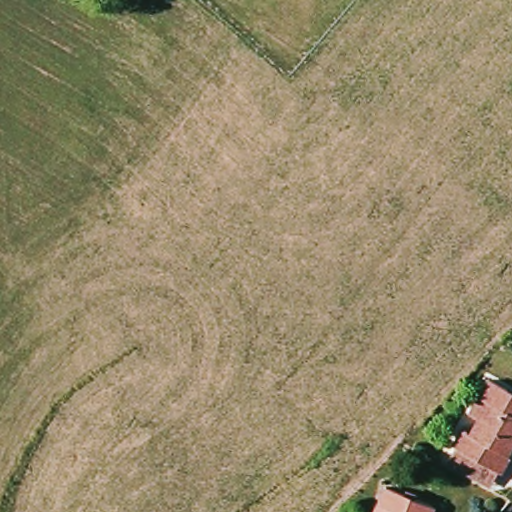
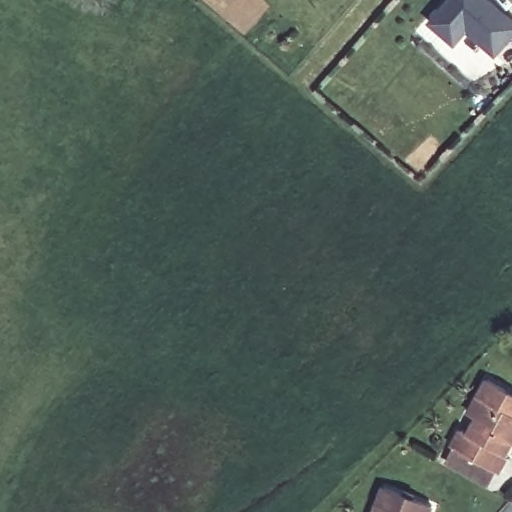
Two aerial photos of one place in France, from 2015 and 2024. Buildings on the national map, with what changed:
new [(512,16),(512,42),(498,58),(469,33),(457,47),(428,23),(448,0),(493,0),(512,16)]
unchanged [(450,447),(461,431),(470,435),(477,418),(470,414),(488,382),(512,395),(512,441),(505,454),(508,456),(498,472),(497,471),(488,487),(447,465),(455,450),(450,447)]
unchanged [(385,484),(432,501),(429,512),(380,512),(374,509),(385,484)]

